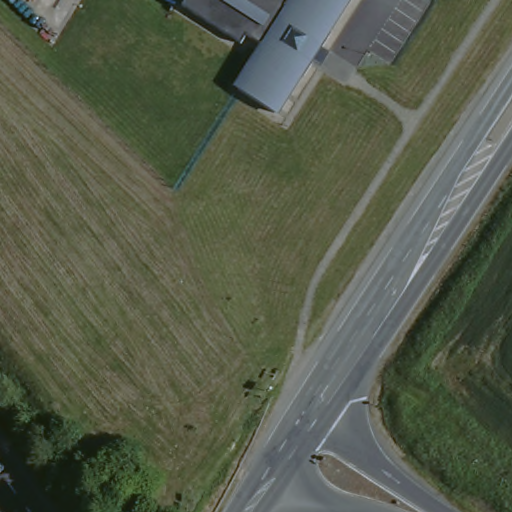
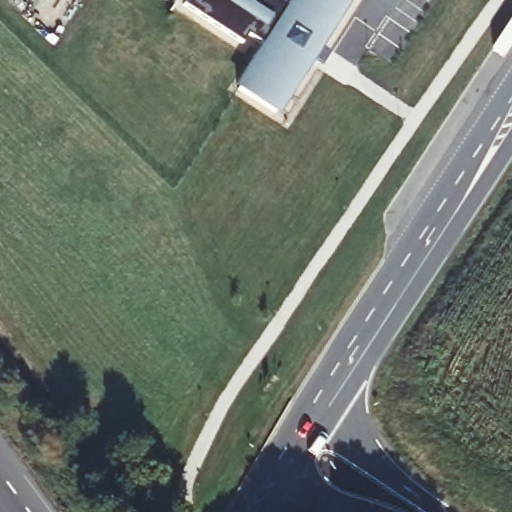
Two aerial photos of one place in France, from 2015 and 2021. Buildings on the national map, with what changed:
unchanged [(177,1),(175,0),(177,0),(177,1)]
unchanged [(321,39),(326,42),(298,84),(294,81),(269,120),(232,96),(258,55),(241,43),(236,51),(176,14),(185,0),(260,0),(267,5),(270,0),(274,0),(287,9),(293,0),(346,0),(321,39)]

